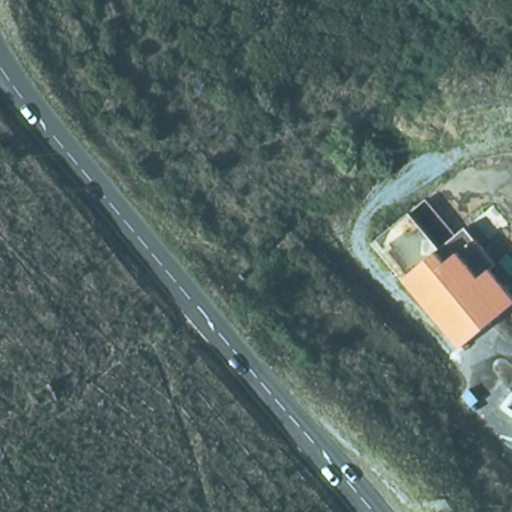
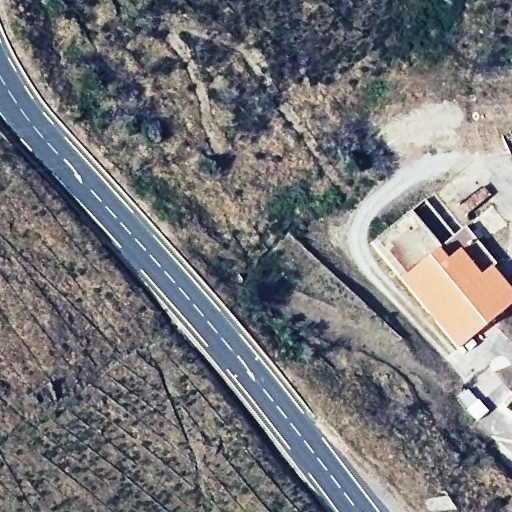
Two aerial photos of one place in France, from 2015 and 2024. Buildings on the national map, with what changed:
unchanged [(371,247),(425,204),(456,239),(467,230),(500,267),(495,272),(512,292),(512,312),(463,352),(450,336),(371,247)]

